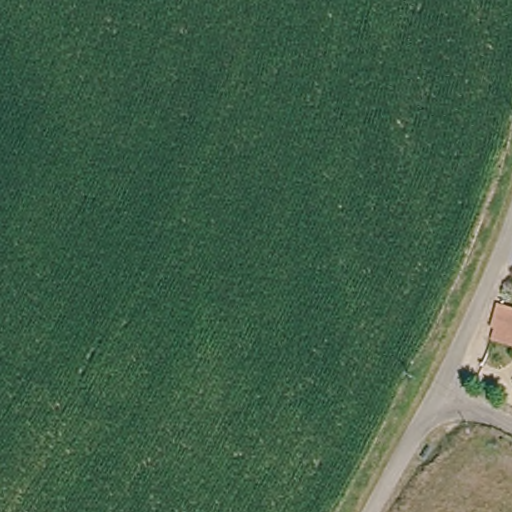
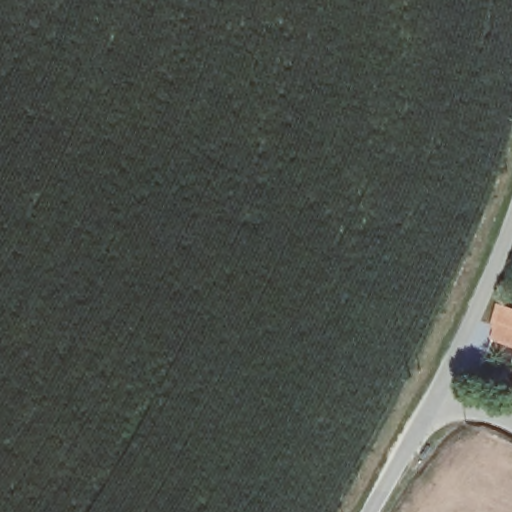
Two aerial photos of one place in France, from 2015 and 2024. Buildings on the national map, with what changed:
unchanged [(491,335),(494,329),(491,327),(497,306),(512,310),(512,340),(491,335)]

